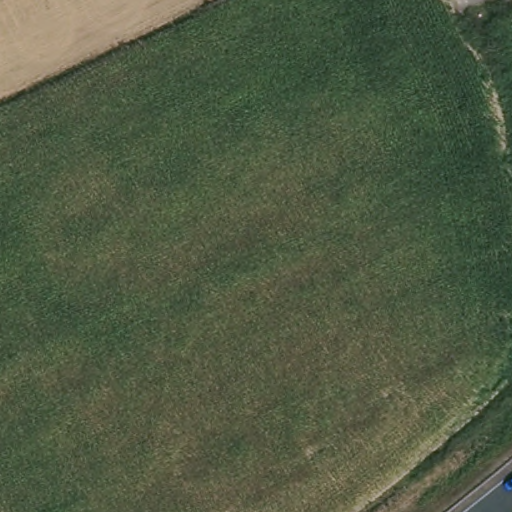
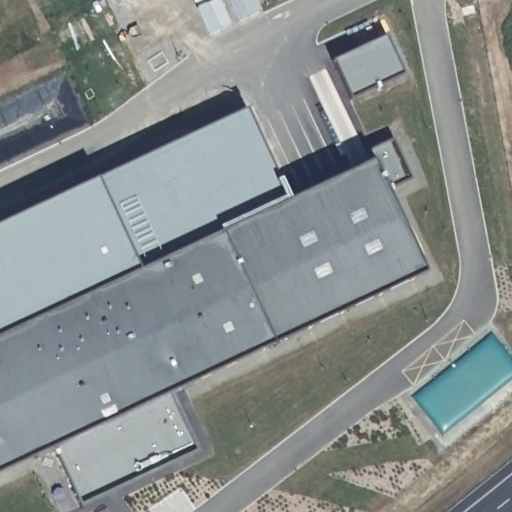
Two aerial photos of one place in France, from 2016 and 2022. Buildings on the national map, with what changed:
new [(386,37),(404,77),(350,101),(331,61),(386,37)]
new [(400,196),(392,200),(424,271),(172,396),(192,451),(73,506),(50,451),(0,473),(0,333),(384,149),(400,196)]

